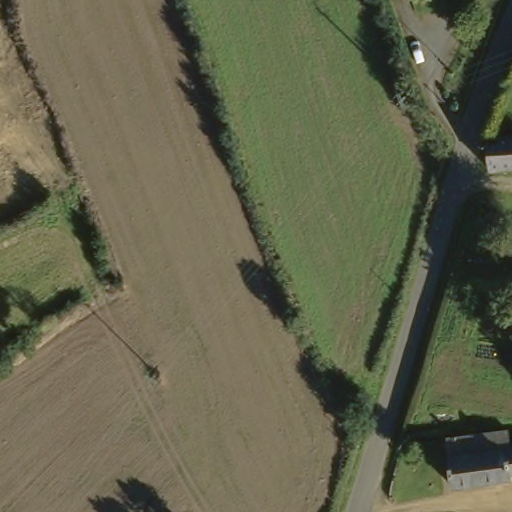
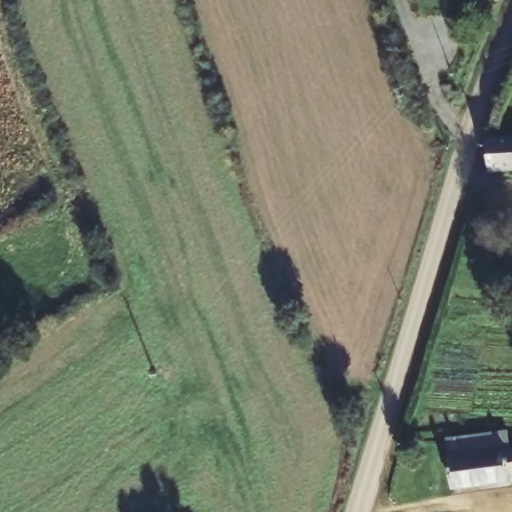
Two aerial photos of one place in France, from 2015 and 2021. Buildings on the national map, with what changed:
unchanged [(489,137),(512,135),(512,167),(491,169),(489,137)]
unchanged [(505,432),(509,446),(512,445),(512,480),(456,495),(450,462),(446,448),(505,432)]

